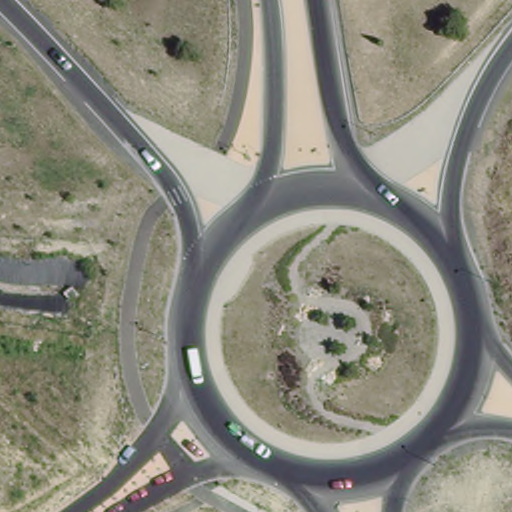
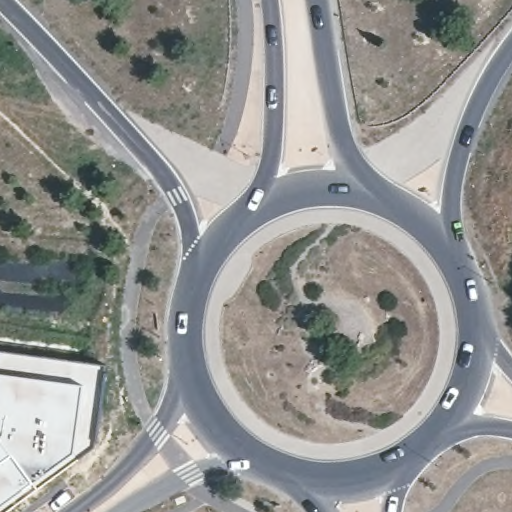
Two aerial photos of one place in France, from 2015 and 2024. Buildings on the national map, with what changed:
new [(93,424),(92,445),(65,467),(4,512),(0,512),(0,349),(101,364),(93,424)]

